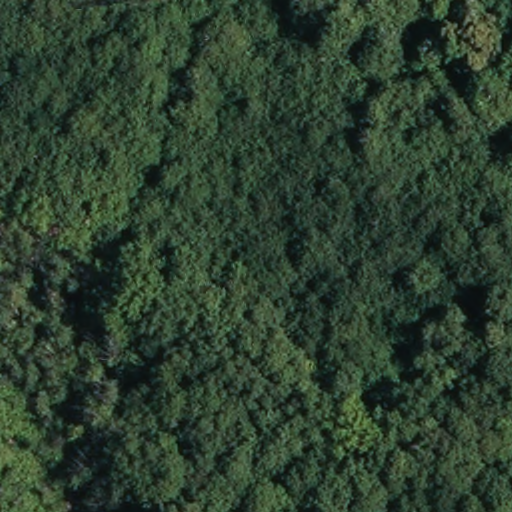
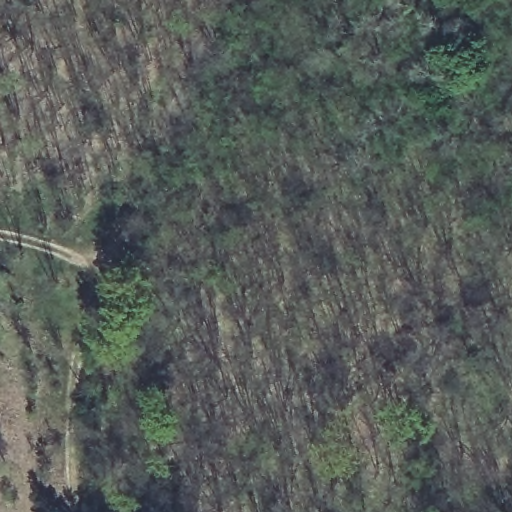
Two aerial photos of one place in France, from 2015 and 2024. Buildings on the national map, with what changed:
[]

